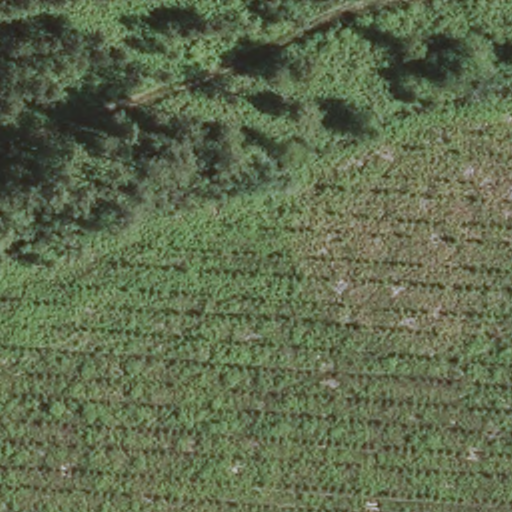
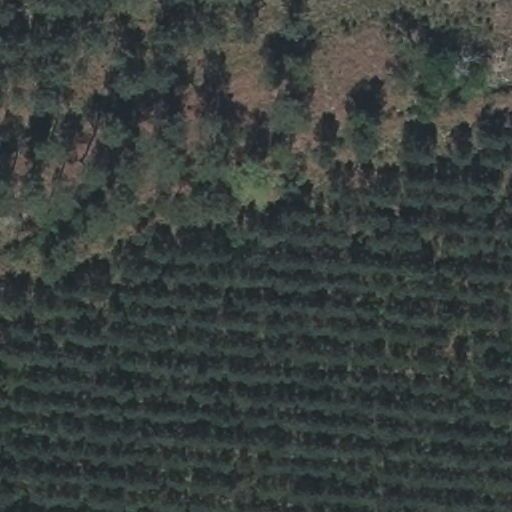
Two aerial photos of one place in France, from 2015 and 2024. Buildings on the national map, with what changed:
[]

